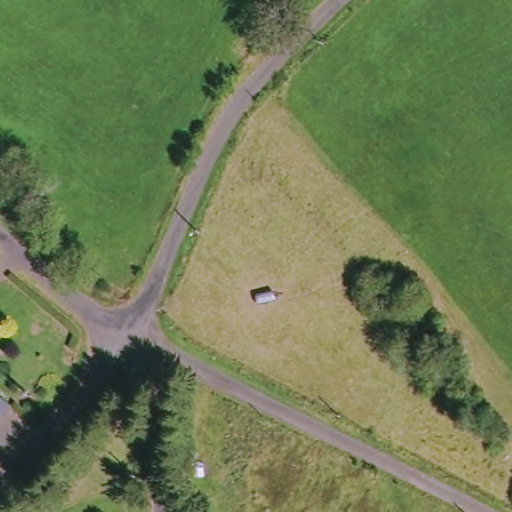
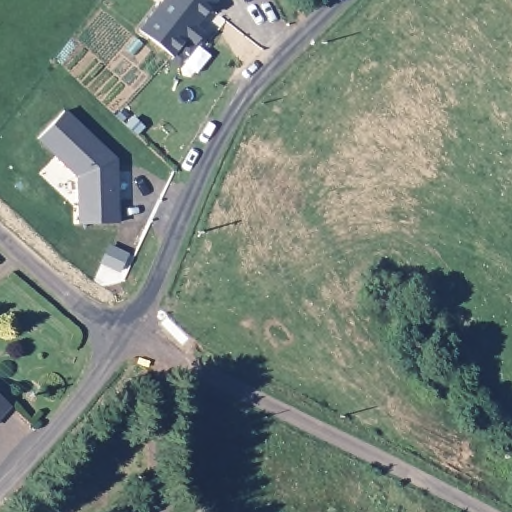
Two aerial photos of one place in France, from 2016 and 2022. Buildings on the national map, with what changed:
new [(216,0),(210,9),(220,19),(195,47),(186,40),(173,57),(140,30),(163,0),(216,0)]
new [(117,160),(119,224),(79,222),(77,177),(37,140),(64,110),(117,160)]
unchanged [(0,423),(0,397),(14,411),(0,423)]

